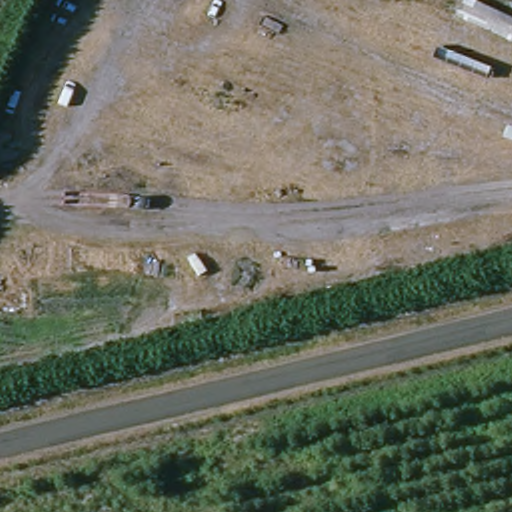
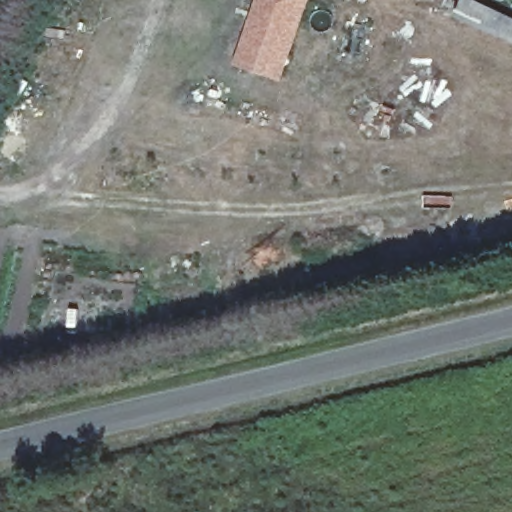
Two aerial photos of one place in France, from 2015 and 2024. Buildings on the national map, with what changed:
new [(284,83),(236,66),(258,0),(312,0),(284,83)]
new [(463,0),(477,0),(512,17),(512,43),(456,16),(463,0)]

